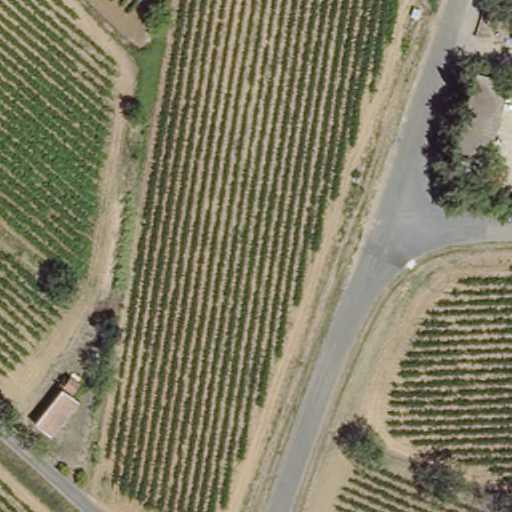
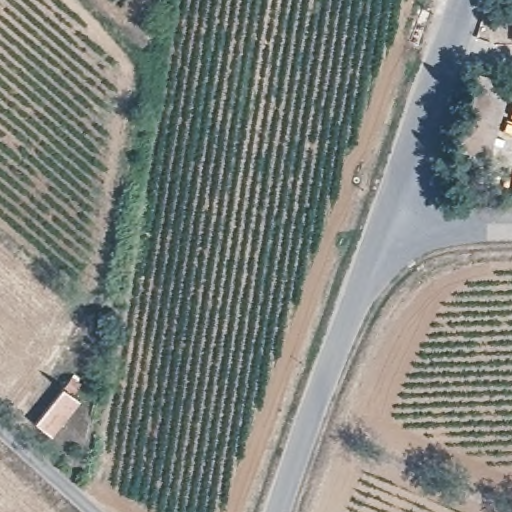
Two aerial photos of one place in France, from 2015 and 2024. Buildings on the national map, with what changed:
unchanged [(502,86),(482,160),(455,154),(479,79),(502,86)]
unchanged [(67,390),(59,384),(65,376),(73,382),(67,390)]
unchanged [(70,403),(46,434),(30,422),(55,390),(70,403)]

